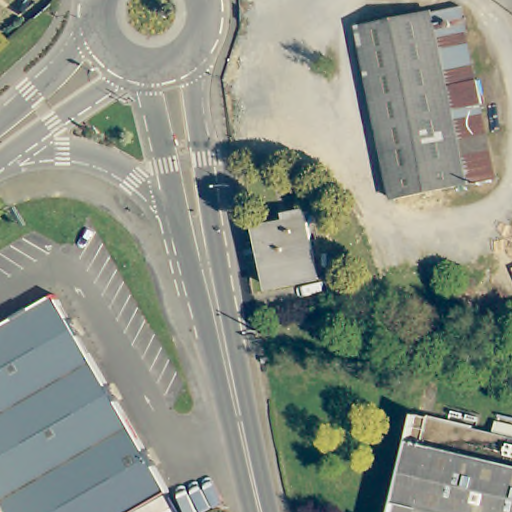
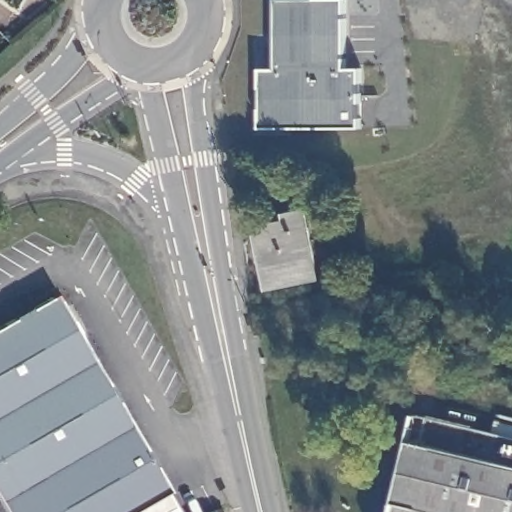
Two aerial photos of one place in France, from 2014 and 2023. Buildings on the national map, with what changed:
new [(346,66),(362,66),(363,126),(261,125),(260,66),(278,65),(278,0),(346,0),(346,66)]
demolished [(470,184),(395,199),(360,27),(433,12),(470,184)]
unchanged [(321,278),(274,288),(261,227),(291,220),(290,214),(307,210),(321,278)]
unchanged [(72,320),(81,337),(80,338),(108,387),(110,386),(119,402),(118,404),(146,451),(147,450),(156,466),(155,467),(169,492),(134,512),(5,512),(0,503),(0,328),(14,320),(13,318),(30,309),(30,310),(55,296),(70,321),(72,320)]
unchanged [(512,431),(512,512),(399,512),(423,410),(512,431)]

